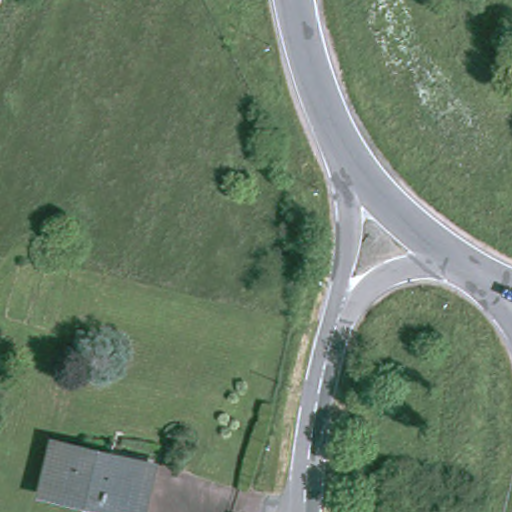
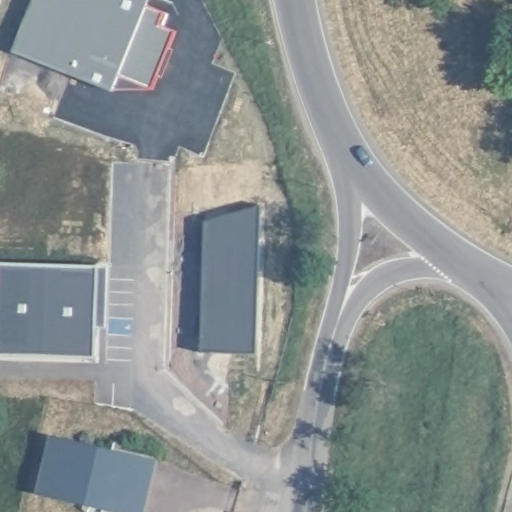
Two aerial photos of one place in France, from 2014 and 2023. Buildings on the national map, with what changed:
new [(114,92),(114,93),(13,53),(35,0),(150,0),(147,7),(165,14),(160,26),(176,33),(170,48),(175,50),(163,80),(158,78),(152,91),(114,92)]
new [(205,223),(260,207),(257,354),(202,353),(205,223)]
new [(107,267),(104,327),(96,326),(96,359),(0,355),(0,263),(97,266),(107,267)]
unchanged [(143,512),(134,512),(55,494),(67,443),(155,463),(143,512)]

